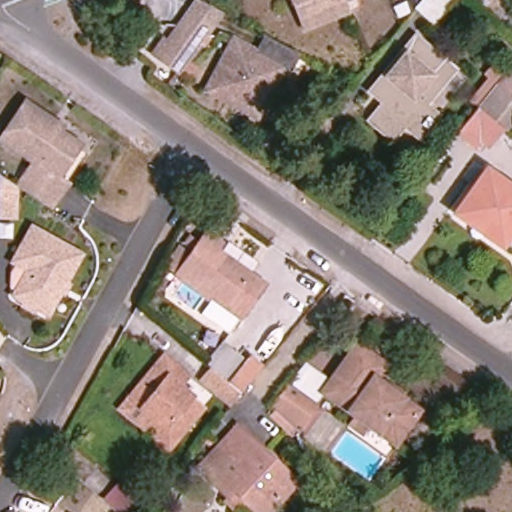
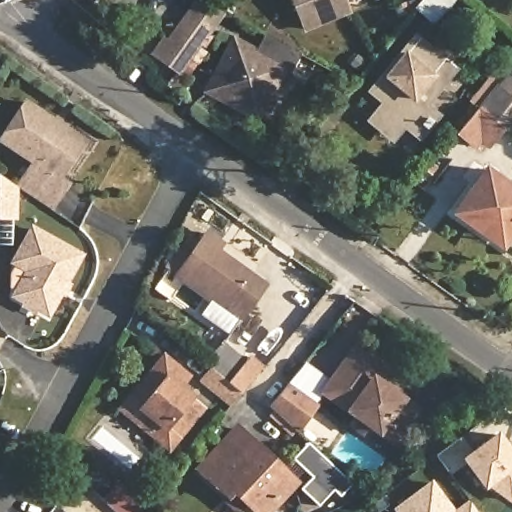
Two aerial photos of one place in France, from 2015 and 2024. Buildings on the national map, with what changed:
unchanged [(182,10),(187,0),(202,0),(215,7),(207,23),(178,75),(154,62),(182,10)]
unchanged [(305,30),(294,0),(342,0),(347,13),(305,30)]
unchanged [(455,0),(435,23),(418,7),(417,6),(422,0),(455,0)]
unchanged [(283,83),(276,79),(270,90),(265,86),(249,116),(223,101),(220,106),(202,96),(228,47),(240,53),(249,36),(255,39),(259,41),(295,60),(283,83)]
unchanged [(458,71),(429,107),(441,117),(428,133),(413,120),(401,135),(384,121),(399,103),(386,91),(425,44),(458,71)]
unchanged [(512,93),(512,122),(509,126),(506,124),(492,141),(485,135),(478,143),(461,129),(481,104),(499,83),(512,93)]
unchanged [(24,177),(34,161),(1,139),(6,131),(26,102),(53,121),(63,127),(61,131),(81,145),(68,166),(59,179),(68,184),(58,199),(51,210),(17,187),(24,177)]
unchanged [(486,169),(512,187),(512,232),(507,240),(475,217),(469,225),(454,215),(486,169)]
unchanged [(15,201),(14,216),(0,216),(0,176),(14,185),(15,201)]
unchanged [(22,302),(24,298),(15,292),(30,266),(18,259),(23,250),(21,249),(36,226),(75,251),(69,259),(77,264),(65,282),(69,284),(62,294),(59,292),(46,312),(37,306),(34,310),(22,302)]
unchanged [(190,256),(206,233),(221,245),(217,252),(264,285),(239,320),(176,275),(190,256)]
unchanged [(200,380),(209,368),(205,364),(222,344),(245,363),(249,358),(262,368),(240,393),(230,405),(200,380)]
unchanged [(356,345),(385,367),(375,380),(419,411),(395,446),(321,394),(356,345)]
unchanged [(155,367),(179,388),(204,408),(170,450),(159,441),(167,432),(129,400),(155,367)]
unchanged [(286,385),(317,407),(298,433),(270,408),(286,385)]
unchanged [(233,491),(228,496),(201,471),(240,429),(295,480),(266,512),(256,512),(233,491)]
new [(470,450),(497,431),(512,450),(512,503),(511,505),(486,487),(483,490),(463,464),(449,475),(434,456),(460,437),(470,450)]
new [(453,509),(467,499),(477,512),(394,512),(391,509),(431,479),(453,509)]
unchanged [(116,481),(146,508),(142,512),(120,512),(101,496),(116,481)]

